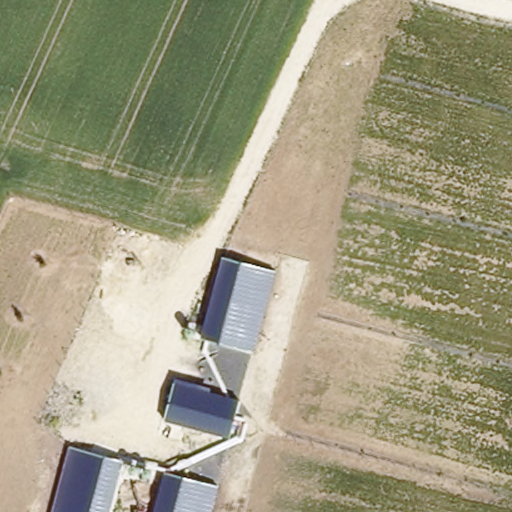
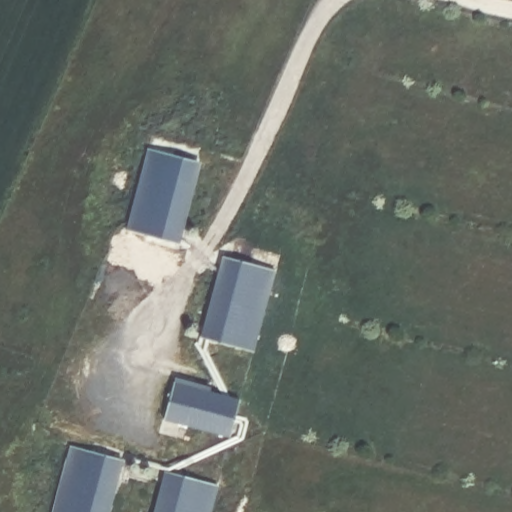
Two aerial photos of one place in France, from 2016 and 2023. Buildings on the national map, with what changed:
new [(149,149),(202,162),(180,242),(127,229),(149,149)]
unchanged [(222,256),(275,269),(254,350),(200,337),(222,256)]
unchanged [(176,377),(210,385),(208,392),(240,399),(227,436),(164,419),(176,377)]
unchanged [(70,445),(122,461),(109,512),(51,512),(70,445)]
unchanged [(149,477),(147,477),(146,477),(142,476),(132,472),(130,470),(129,470),(129,467),(130,465),(132,464),(135,464),(150,468),(152,470),(152,472),(152,473),(151,475),(149,477)]
unchanged [(165,471),(217,484),(210,512),(154,512),(165,471)]

